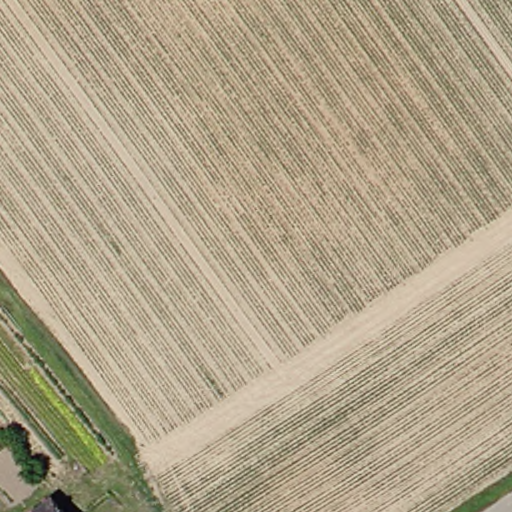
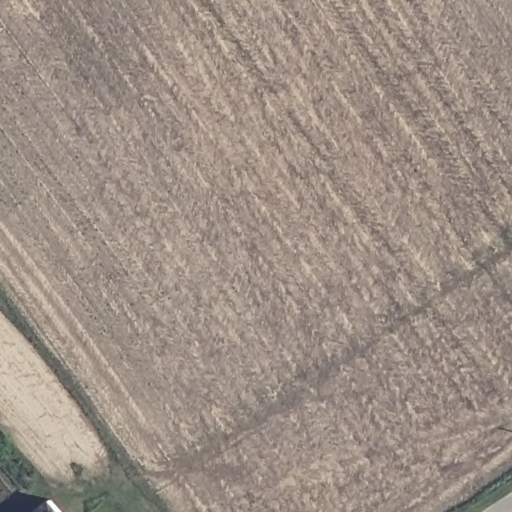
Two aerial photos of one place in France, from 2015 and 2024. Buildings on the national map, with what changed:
unchanged [(57,495),(71,512),(36,512),(57,495)]

